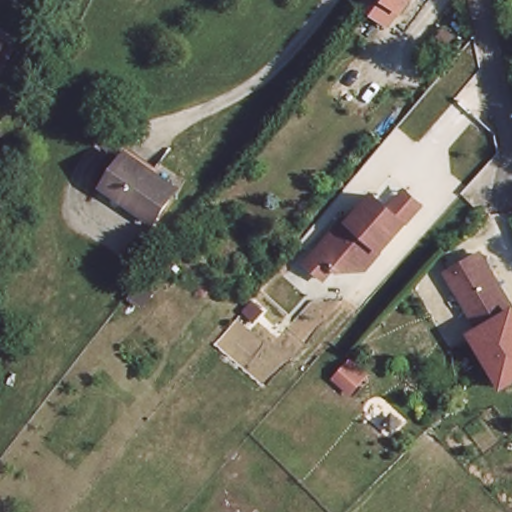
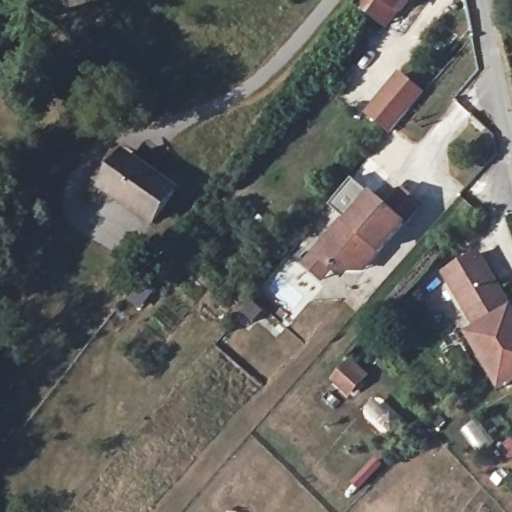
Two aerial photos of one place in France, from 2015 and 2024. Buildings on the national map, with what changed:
unchanged [(359,0),(383,0),(373,12),(359,0)]
unchanged [(395,4),(389,0),(397,0),(395,4)]
new [(399,72),(425,92),(390,134),(364,114),(399,72)]
unchanged [(170,192),(147,223),(105,188),(100,183),(123,154),(128,159),(170,192)]
unchanged [(388,195),(404,181),(423,199),(364,272),(337,270),(324,281),(307,267),(377,187),(388,195)]
unchanged [(483,251),(512,307),(512,309),(479,326),(449,267),(483,251)]
unchanged [(498,391),(465,335),(479,326),(512,309),(512,383),(498,391)]

